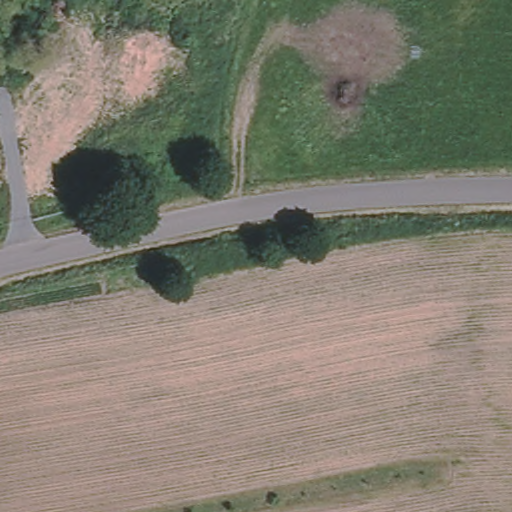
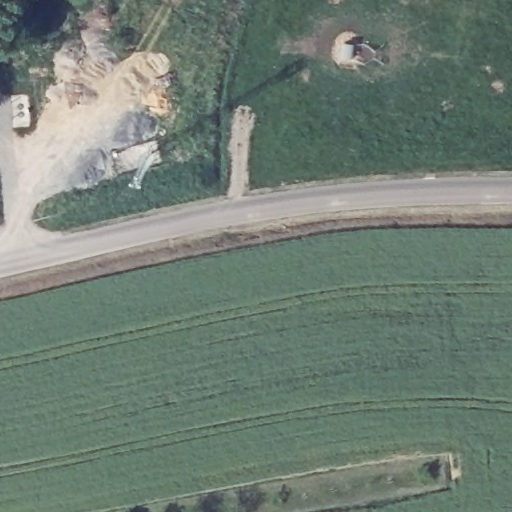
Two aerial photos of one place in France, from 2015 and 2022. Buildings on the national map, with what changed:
[]

